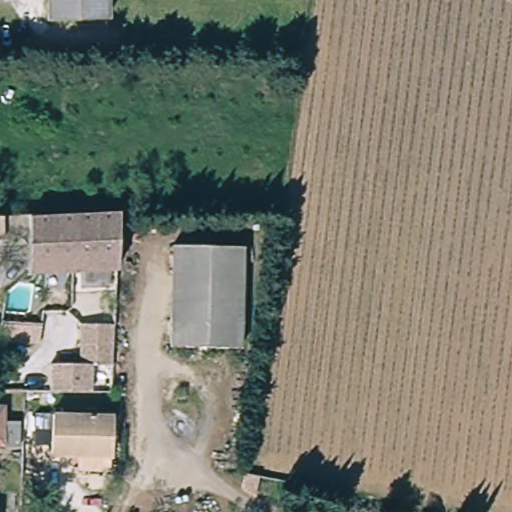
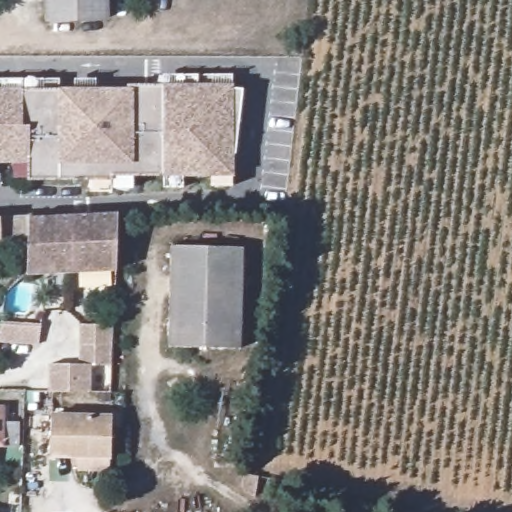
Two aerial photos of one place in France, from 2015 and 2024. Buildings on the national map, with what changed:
unchanged [(44,19),(43,0),(104,0),(104,17),(44,19)]
new [(233,176),(233,187),(211,187),(210,177),(183,177),(183,188),(163,187),(163,177),(133,177),(133,189),(110,189),(110,192),(90,192),(89,181),(28,181),(28,177),(13,178),(13,164),(0,164),(0,79),(43,79),(60,79),(60,88),(74,88),(74,80),(96,79),(96,88),(127,88),(128,84),(163,84),(163,74),(232,75),(231,84),(234,84),(234,88),(243,89),(233,159),(233,176)]
unchanged [(0,247),(0,219),(30,219),(118,217),(116,272),(75,273),(31,273),(31,264),(21,264),(21,247),(0,247)]
unchanged [(171,348),(176,249),(183,249),(245,252),(241,351),(178,349),(171,348)]
unchanged [(43,322),(45,322),(44,342),(5,341),(5,339),(8,321),(43,322)]
unchanged [(90,362),(90,390),(74,390),(50,390),(50,362),(80,362),(82,322),(115,323),(113,362),(90,362)]
unchanged [(0,414),(1,414),(0,429),(15,429),(15,453),(0,452),(0,414)]
unchanged [(70,459),(46,458),(48,417),(106,419),(105,460),(105,473),(70,472),(70,459)]

